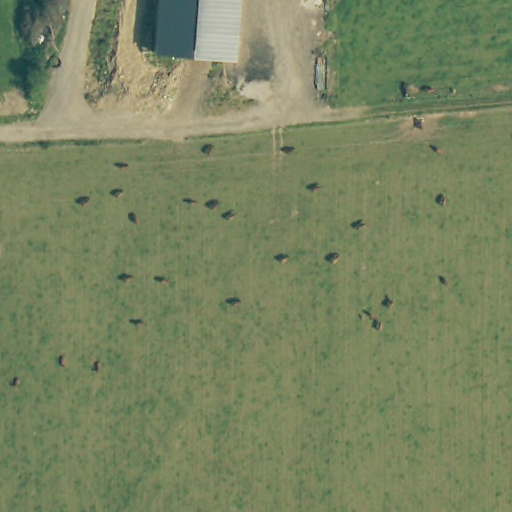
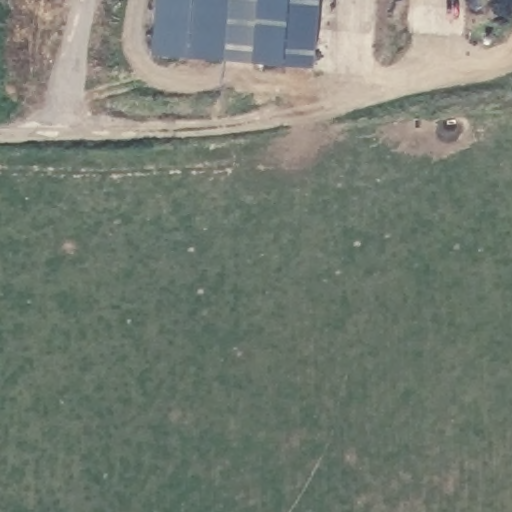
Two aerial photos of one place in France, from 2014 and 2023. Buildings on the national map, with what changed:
unchanged [(234,60),(150,52),(155,0),(238,0),(234,60)]
new [(238,0),(320,0),(314,64),(234,60),(238,0)]

